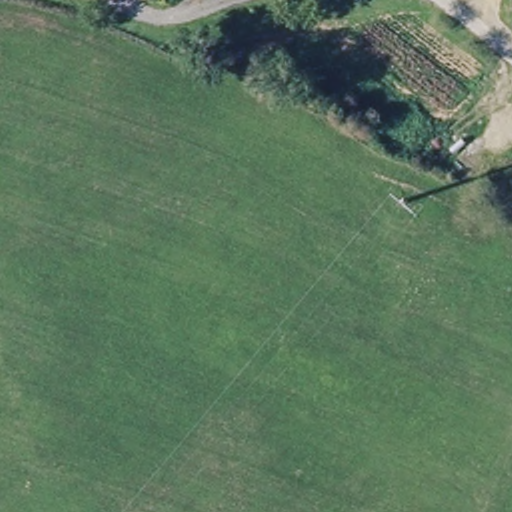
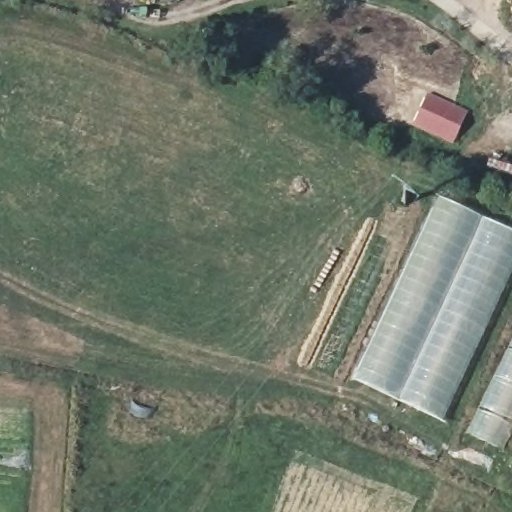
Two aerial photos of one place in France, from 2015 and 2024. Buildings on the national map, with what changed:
unchanged [(512,19),(512,24),(510,22),(512,19)]
new [(427,90),(469,110),(453,144),(411,124),(427,90)]
new [(416,244),(437,196),(512,230),(512,271),(443,422),(351,378),(415,243),(416,244)]
new [(512,430),(503,448),(466,432),(512,337),(512,430)]

